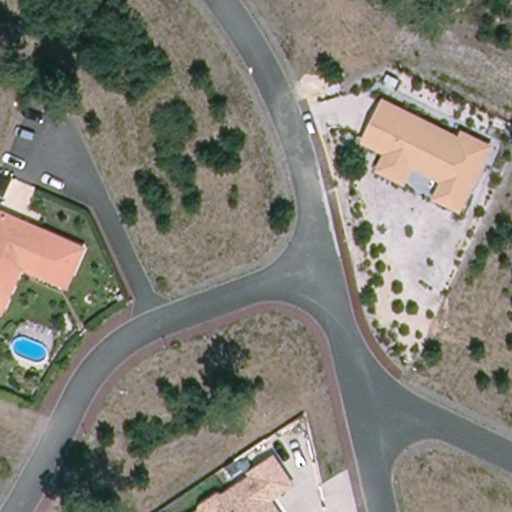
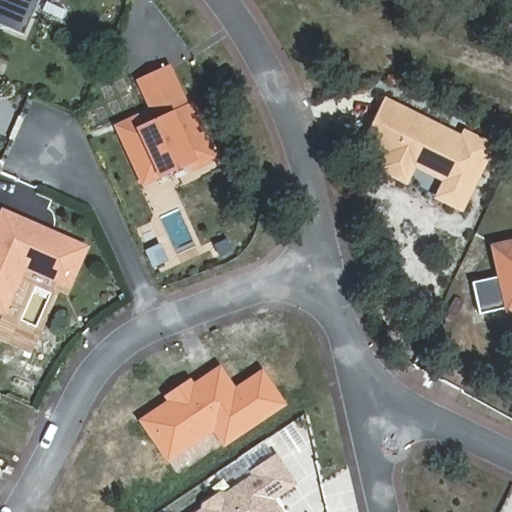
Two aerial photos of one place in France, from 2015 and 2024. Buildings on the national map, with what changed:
new [(24,34),(0,25),(0,0),(38,0),(24,34)]
new [(55,0),(59,0),(58,1),(55,0)]
new [(138,123),(143,134),(161,126),(143,86),(170,74),(189,113),(192,112),(215,162),(195,172),(192,165),(145,187),(120,132),(138,123)]
unchanged [(463,125),(496,142),(461,213),(433,199),(442,181),(415,168),(405,186),(375,169),(384,151),(362,141),(385,97),(460,135),(463,125)]
unchanged [(31,272),(22,268),(4,311),(0,309),(0,224),(3,217),(81,251),(71,274),(65,287),(31,272)]
new [(505,313),(505,309),(480,316),(473,283),(497,278),(490,245),(512,240),(512,312),(505,313)]
new [(138,420),(166,400),(164,396),(191,378),(194,383),(220,365),(235,386),(261,369),(287,405),(222,448),(214,432),(167,463),(138,420)]
unchanged [(200,501),(220,488),(224,492),(257,470),(284,512),(193,512),(203,505),(200,501)]

